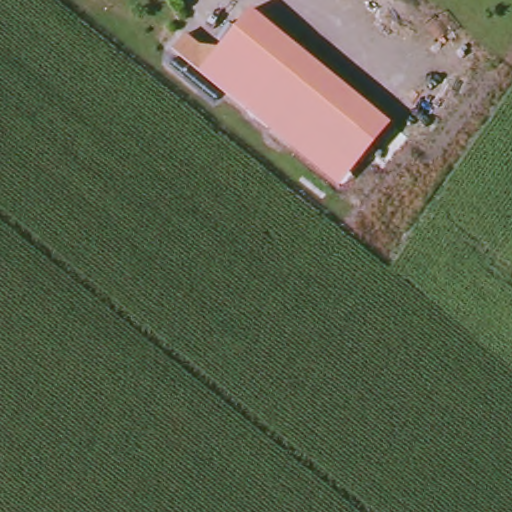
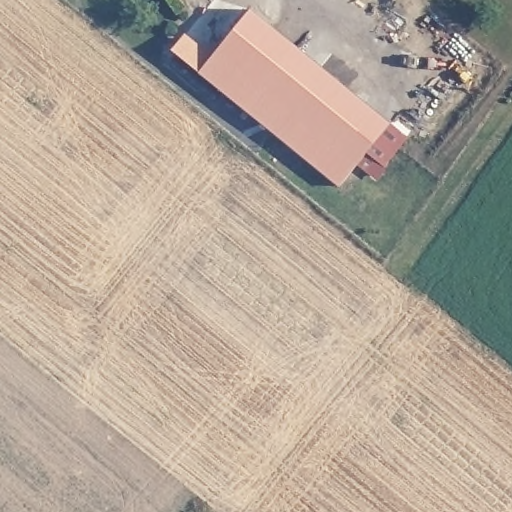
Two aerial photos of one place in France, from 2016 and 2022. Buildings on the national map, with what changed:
unchanged [(394,123),(343,186),(202,72),(254,9),(394,123)]

